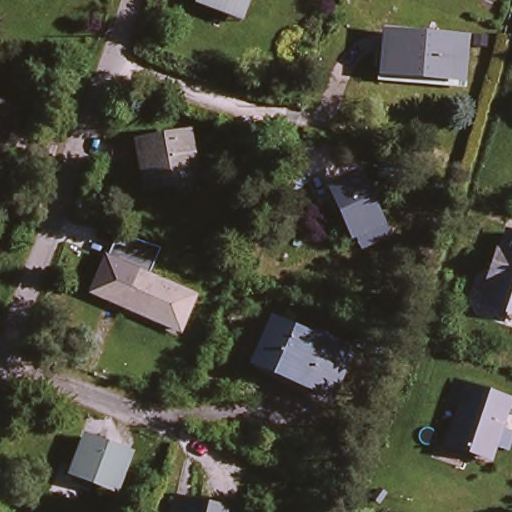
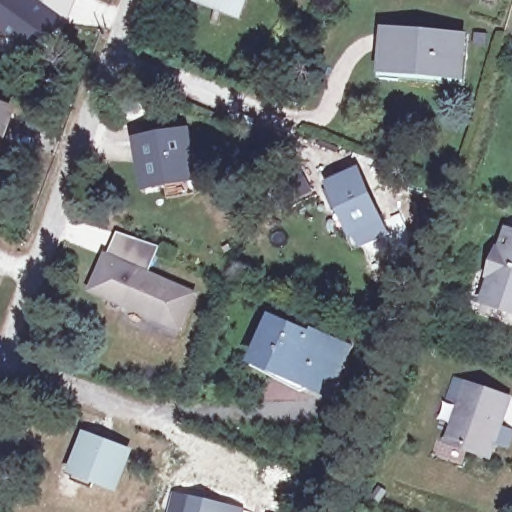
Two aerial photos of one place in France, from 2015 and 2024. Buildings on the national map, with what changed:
new [(78,0),(69,20),(40,63),(0,32),(0,0),(78,0)]
unchanged [(202,0),(242,0),(237,13),(220,6),(218,11),(201,3),(202,0)]
unchanged [(463,41),(462,78),(390,75),(392,38),(463,41)]
unchanged [(13,113),(0,145),(0,108),(13,113)]
unchanged [(196,179),(155,187),(148,146),(188,140),(196,179)]
unchanged [(378,211),(387,228),(361,241),(332,180),(354,171),(374,213),(378,211)]
unchanged [(486,298),(507,234),(512,236),(512,316),(482,306),(486,298)]
unchanged [(132,302),(116,295),(128,268),(197,297),(183,328),(129,306),(132,302)]
unchanged [(275,313),(358,351),(338,401),(252,366),(275,313)]
unchanged [(473,387),(512,400),(512,405),(493,457),(453,444),(473,387)]
unchanged [(92,437),(130,453),(116,487),(78,472),(92,437)]
unchanged [(185,498),(195,501),(197,488),(230,494),(231,506),(250,510),(250,512),(181,512),(185,498)]

